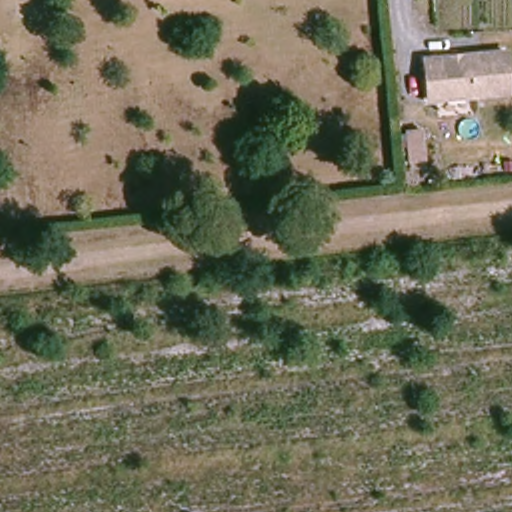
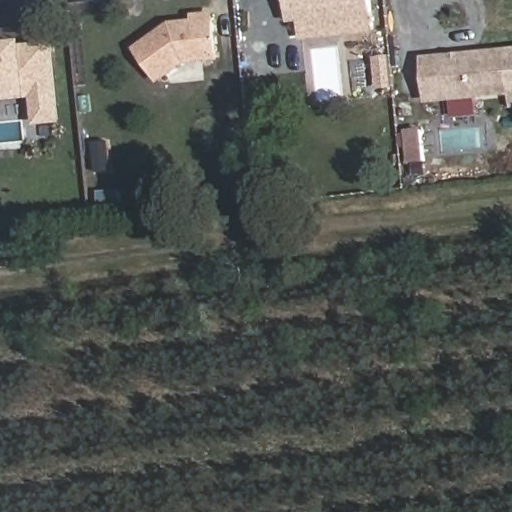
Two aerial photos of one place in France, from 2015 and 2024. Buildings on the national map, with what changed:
new [(300,39),(300,23),(287,24),(285,0),(372,0),(376,33),(300,39)]
new [(214,12),(219,61),(185,64),(159,84),(133,48),(169,22),(214,12)]
new [(61,123),(33,125),(30,96),(0,101),(0,50),(53,44),(61,123)]
unchanged [(508,97),(426,105),(422,64),(503,55),(508,97)]
new [(403,180),(402,166),(398,135),(414,133),(429,132),(432,162),(417,163),(419,178),(403,180)]

